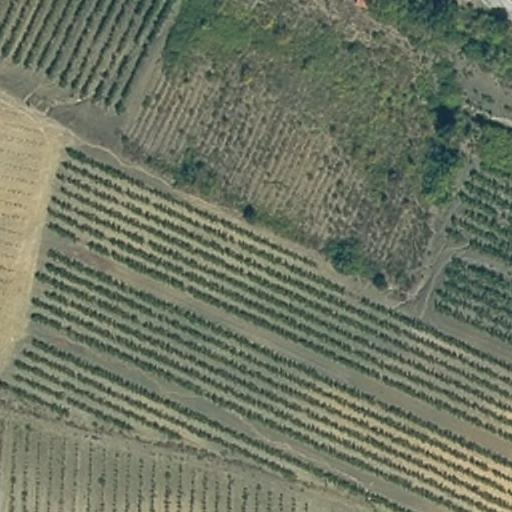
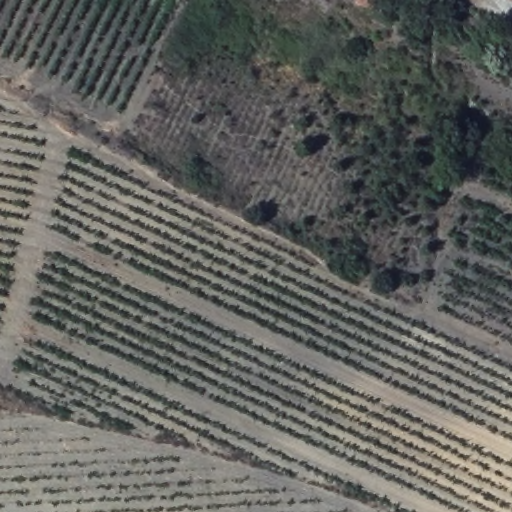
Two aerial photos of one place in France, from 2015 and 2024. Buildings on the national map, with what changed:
unchanged [(356,0),(357,0),(393,0),(390,5),(389,10),(356,0)]

